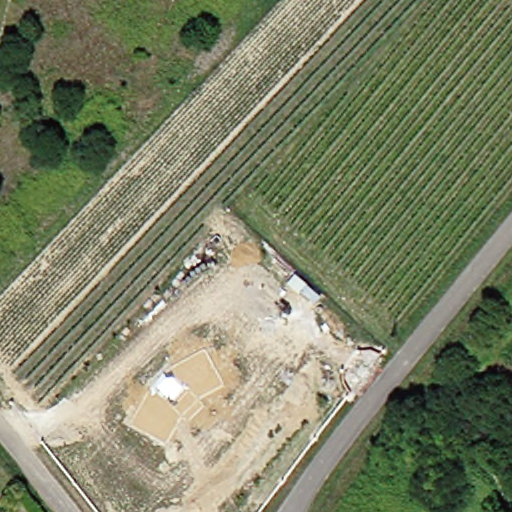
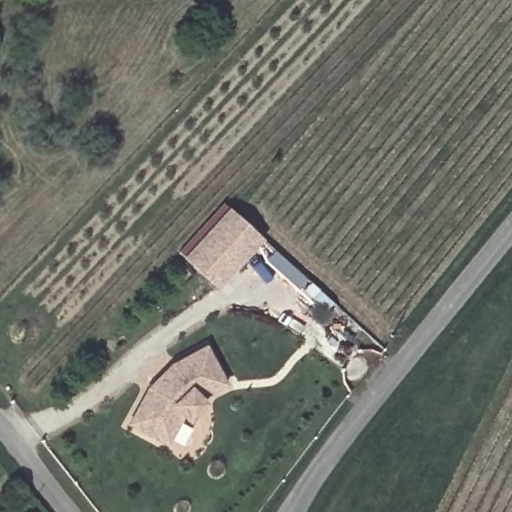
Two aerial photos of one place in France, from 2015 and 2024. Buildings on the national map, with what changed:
new [(263,239),(218,290),(182,258),(228,207),(263,239)]
new [(227,383),(202,399),(208,406),(187,423),(184,420),(168,447),(126,427),(146,388),(169,364),(206,345),(227,383)]

